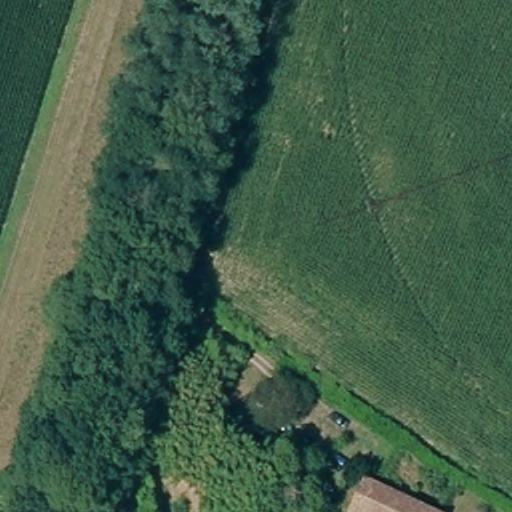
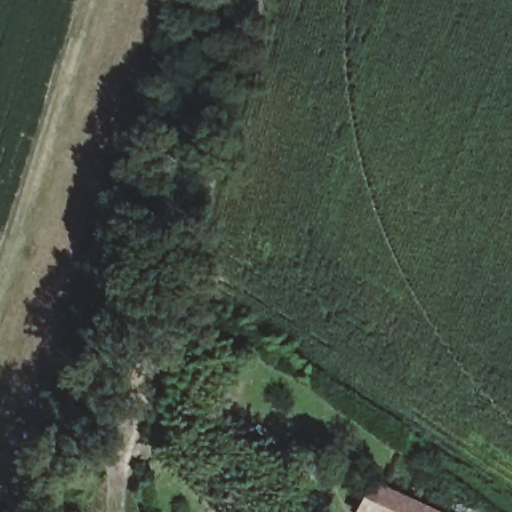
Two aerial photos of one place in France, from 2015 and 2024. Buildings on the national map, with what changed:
unchanged [(414,512),(359,512),(350,505),(371,480),(414,512)]

